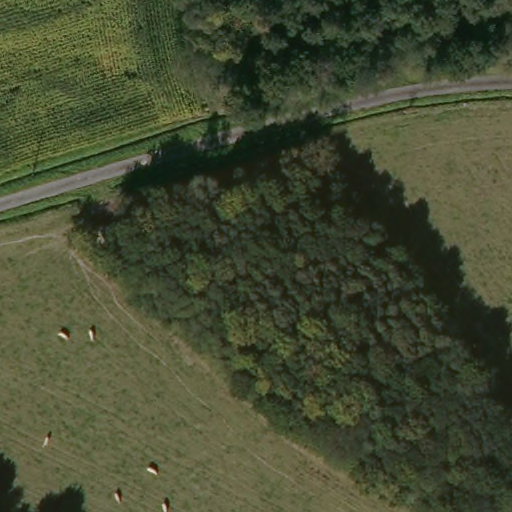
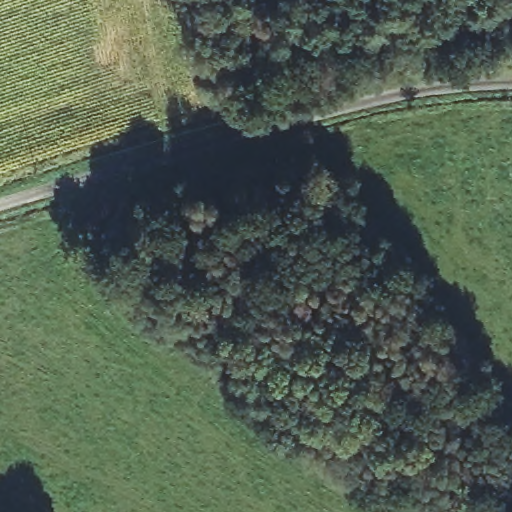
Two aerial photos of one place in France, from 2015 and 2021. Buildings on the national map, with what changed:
[]

